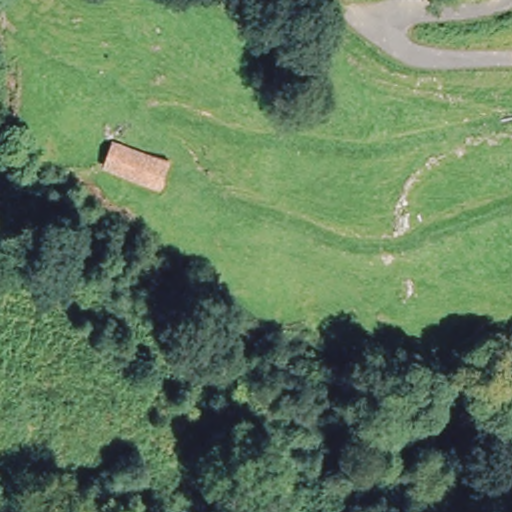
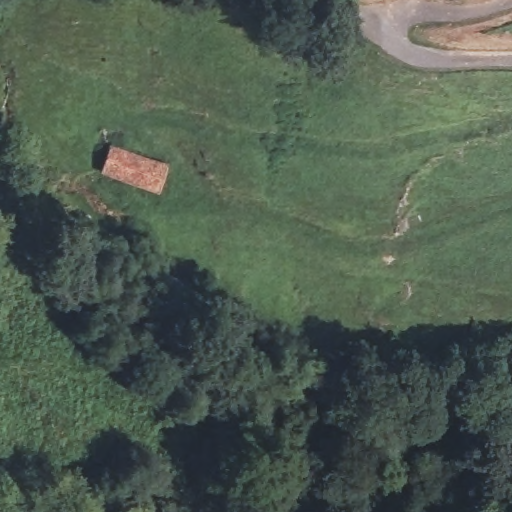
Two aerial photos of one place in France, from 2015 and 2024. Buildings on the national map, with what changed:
unchanged [(111,150),(168,169),(159,196),(101,178),(111,150)]

